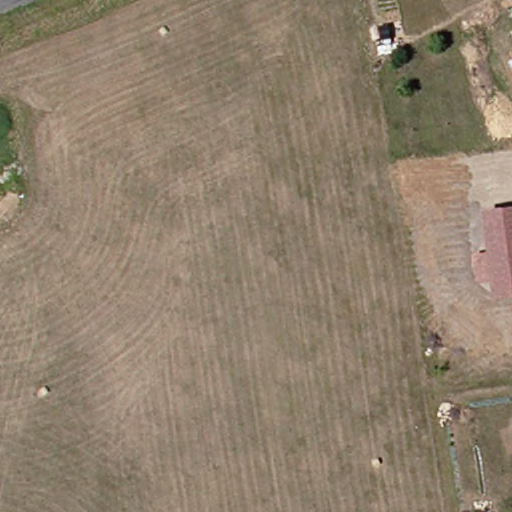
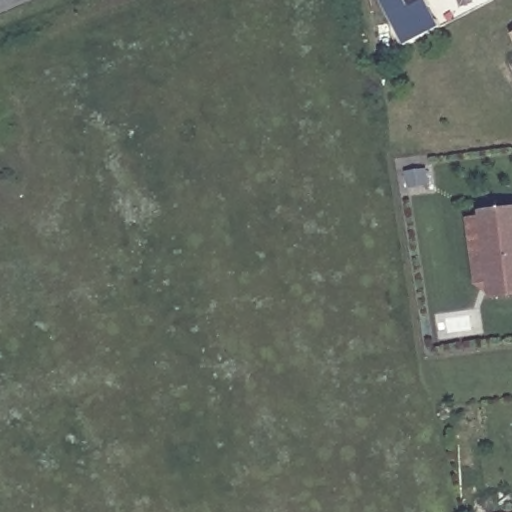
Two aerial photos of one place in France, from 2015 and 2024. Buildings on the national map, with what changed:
new [(409,0),(413,7),(428,0),(429,0),(442,26),(407,44),(385,0),(409,0)]
unchanged [(512,300),(495,302),(483,210),(512,207),(512,300)]

